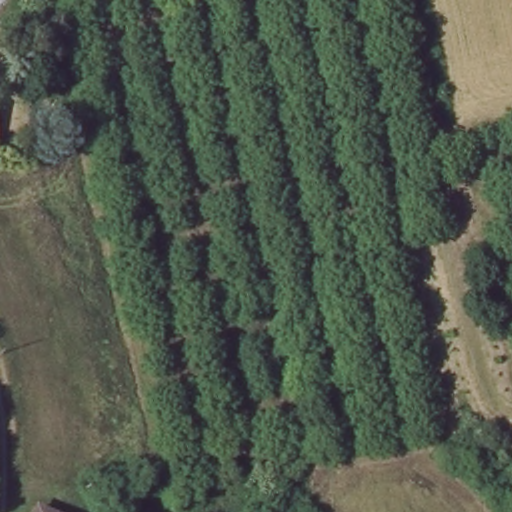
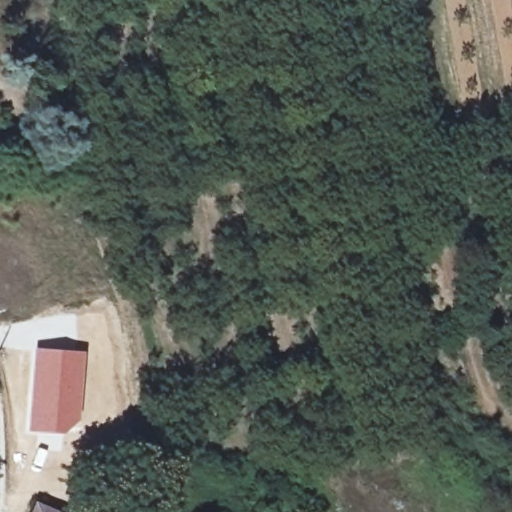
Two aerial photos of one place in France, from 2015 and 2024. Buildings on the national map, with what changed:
new [(33,347),(85,350),(78,423),(63,435),(59,435),(25,433),(33,347)]
unchanged [(35,509),(42,512),(34,512),(35,509)]

